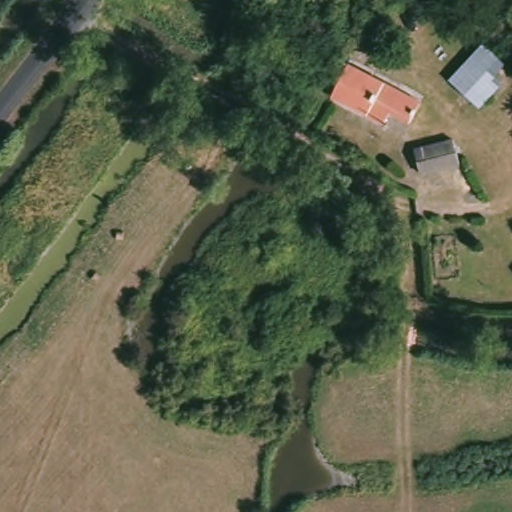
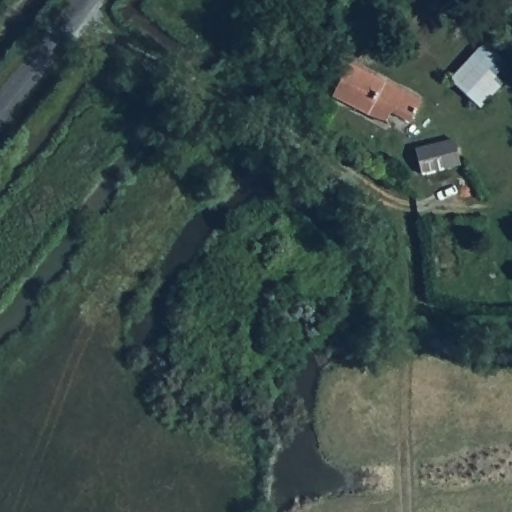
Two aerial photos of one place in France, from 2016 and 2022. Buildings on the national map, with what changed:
unchanged [(502,56),(488,73),(499,82),(481,102),(451,81),(484,41),(502,56)]
unchanged [(418,118),(403,111),(393,123),(339,98),(330,93),(347,59),(357,63),(429,100),(418,118)]
unchanged [(454,141),(459,160),(423,171),(417,150),(454,141)]

